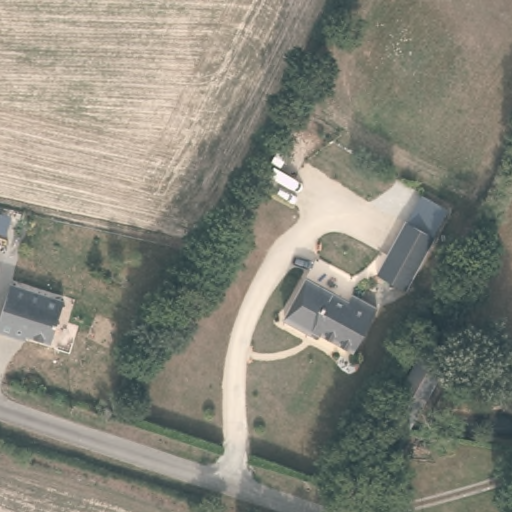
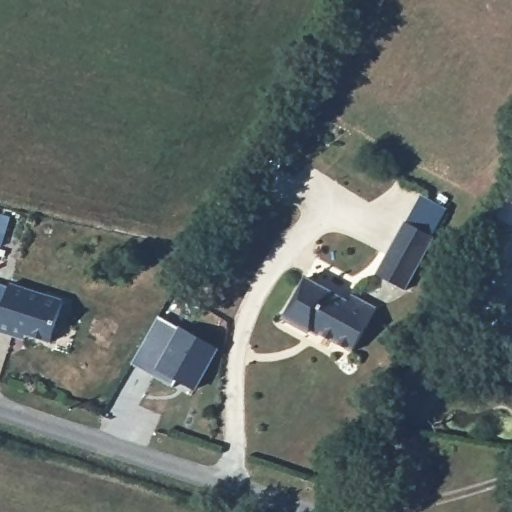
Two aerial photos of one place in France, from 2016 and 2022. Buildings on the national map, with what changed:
unchanged [(406,295),(375,276),(404,222),(435,239),(406,295)]
unchanged [(251,223),(261,227),(252,245),(242,240),(251,223)]
unchanged [(309,272),(375,307),(352,349),(313,327),(309,329),(286,316),(309,272)]
unchanged [(14,335),(0,331),(0,315),(9,283),(63,300),(50,341),(26,334),(25,338),(14,335)]
new [(159,316),(221,348),(197,391),(177,381),(174,386),(132,364),(159,316)]
unchanged [(384,418),(390,407),(428,338),(450,350),(412,419),(406,430),(384,418)]

